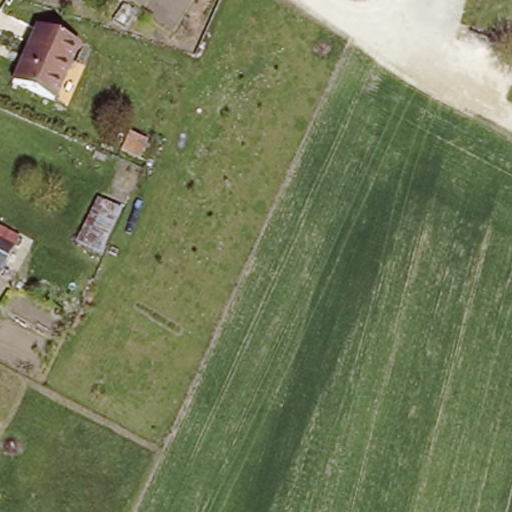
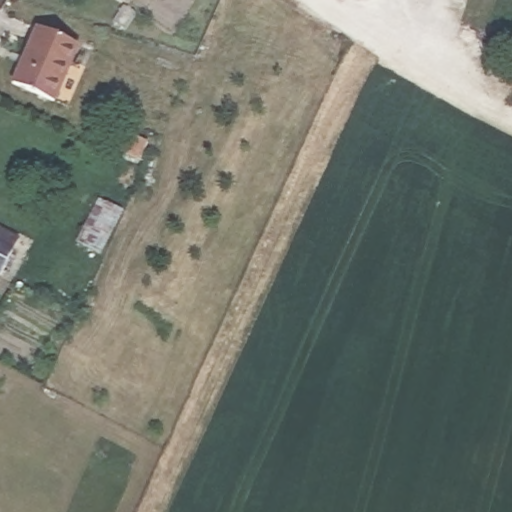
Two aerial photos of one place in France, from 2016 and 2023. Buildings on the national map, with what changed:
unchanged [(53,106),(12,89),(39,27),(80,45),(53,106)]
unchanged [(18,246),(0,282),(0,236),(18,246)]

